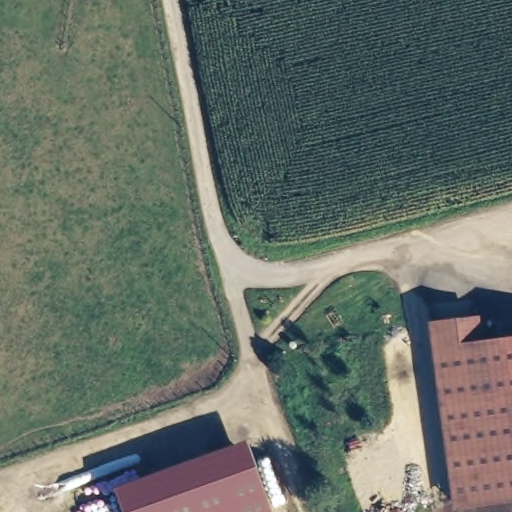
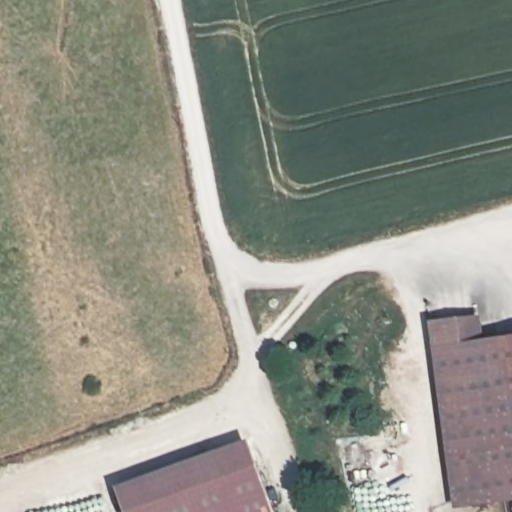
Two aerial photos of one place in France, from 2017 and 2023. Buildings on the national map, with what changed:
unchanged [(512,351),(512,504),(447,511),(425,339),(474,333),(477,355),(512,351)]
unchanged [(273,512),(123,512),(115,488),(246,442),(273,512)]

